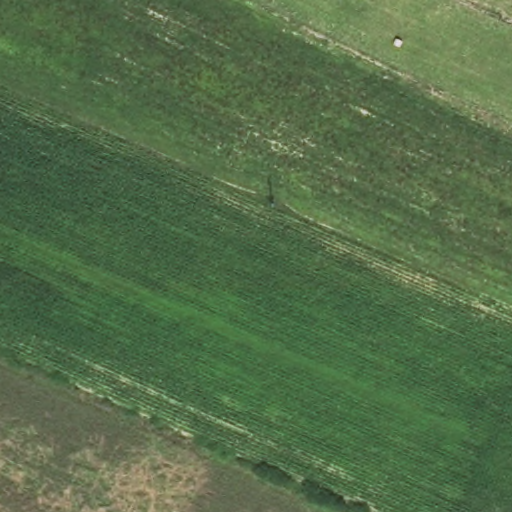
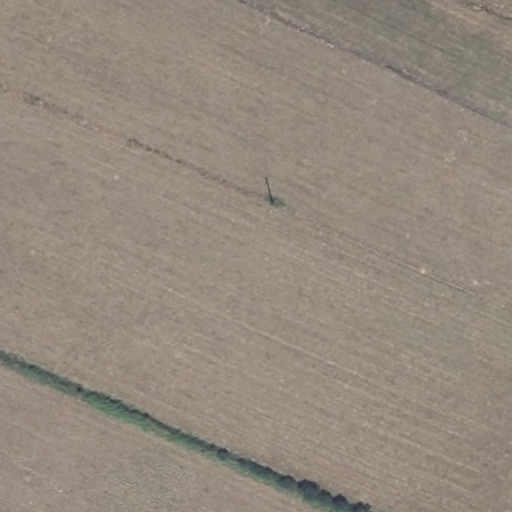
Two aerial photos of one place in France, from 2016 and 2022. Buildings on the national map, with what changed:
[]

